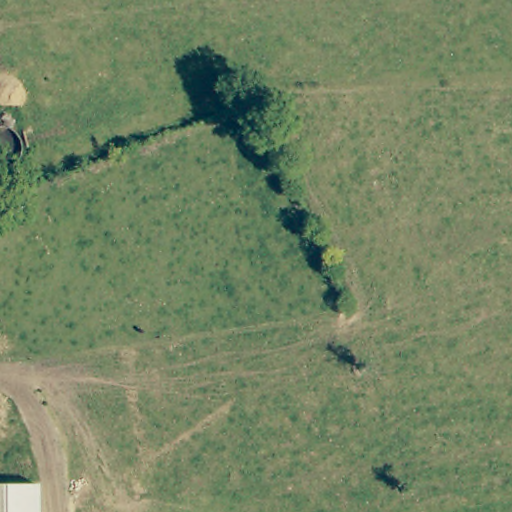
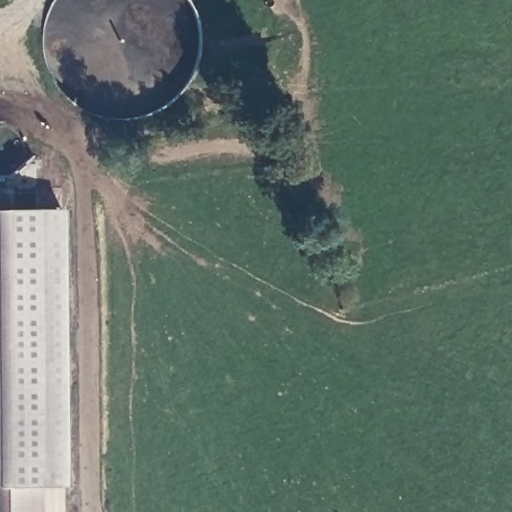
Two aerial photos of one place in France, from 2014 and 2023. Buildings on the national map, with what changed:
new [(39,485),(0,489),(0,209),(60,208),(64,485),(39,485)]
unchanged [(39,512),(0,512),(0,489),(39,485),(39,512)]

